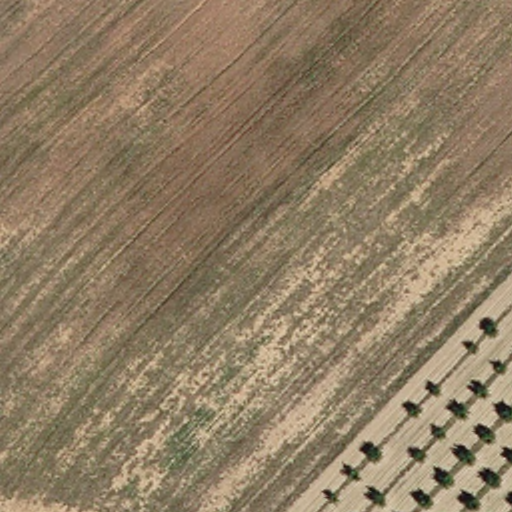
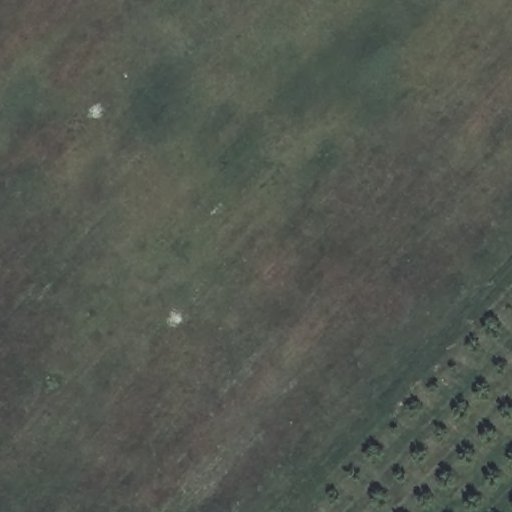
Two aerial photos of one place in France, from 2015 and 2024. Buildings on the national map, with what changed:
[]

